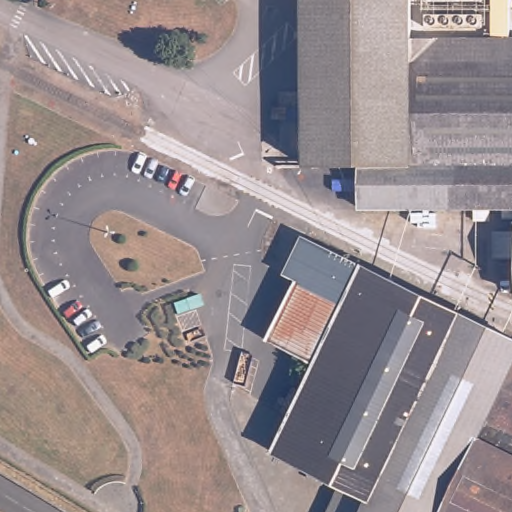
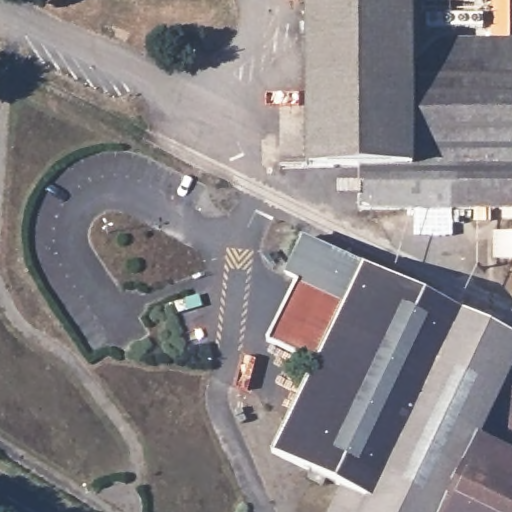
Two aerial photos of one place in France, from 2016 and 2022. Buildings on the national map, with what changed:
unchanged [(415,38),(512,38),(512,210),(359,210),(358,171),(306,171),(306,0),(415,0),(415,38)]
unchanged [(275,456),(317,367),(268,342),(298,283),(284,275),(303,238),(363,268),(512,339),(512,512),(364,512),(367,504),(275,456)]

